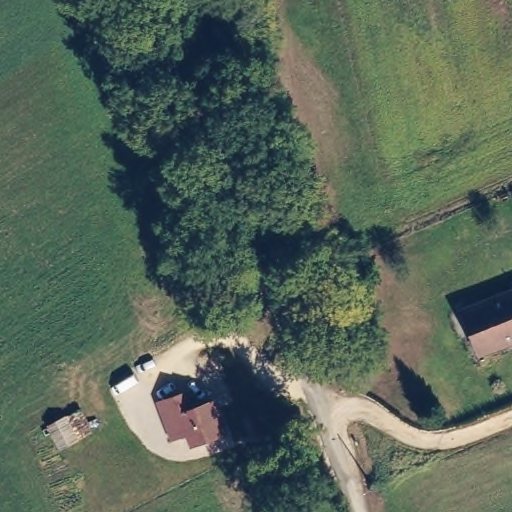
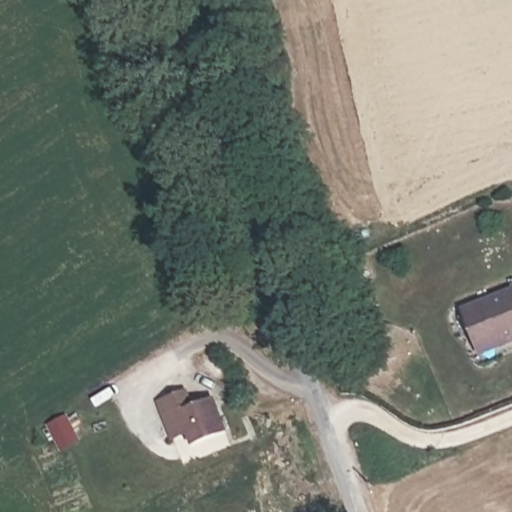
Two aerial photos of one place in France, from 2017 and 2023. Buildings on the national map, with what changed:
unchanged [(512,280),(512,285),(510,280),(512,280)]
unchanged [(465,309),(512,293),(512,344),(498,349),(480,356),(475,340),(465,309)]
unchanged [(190,447),(187,435),(170,439),(155,400),(188,389),(195,404),(217,396),(231,431),(190,447)]

